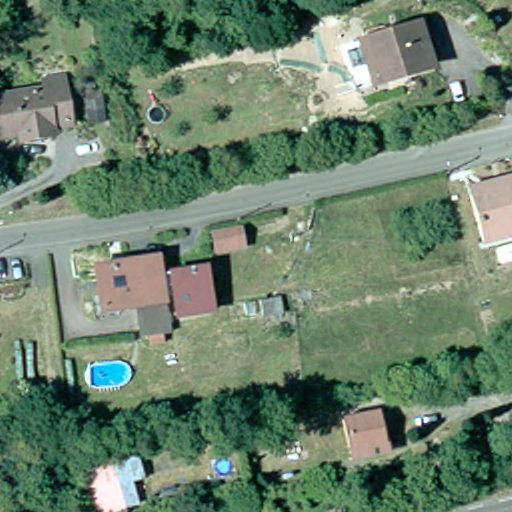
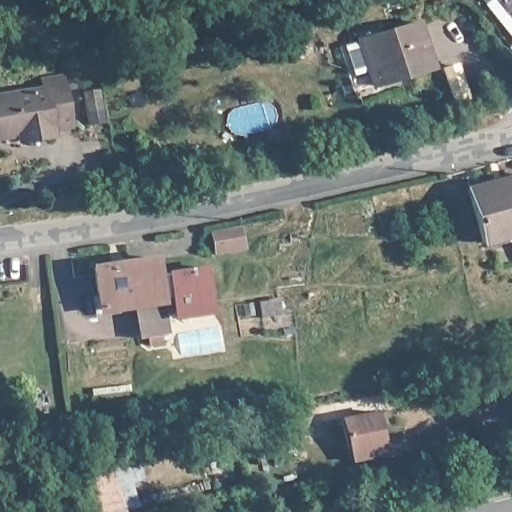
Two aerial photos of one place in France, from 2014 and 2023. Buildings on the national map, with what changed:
unchanged [(356,34),(416,16),(430,59),(390,72),(390,74),(370,80),(356,34)]
unchanged [(45,125),(45,130),(10,135),(10,130),(0,132),(0,90),(36,84),(35,76),(55,72),(63,122),(45,125)]
unchanged [(107,122),(91,125),(87,91),(102,89),(107,122)]
unchanged [(512,230),(480,238),(466,185),(512,174),(512,230)]
unchanged [(244,231),(246,247),(216,251),(214,234),(244,231)]
unchanged [(167,308),(164,288),(155,290),(160,325),(132,330),(128,296),(92,301),(85,258),(149,248),(151,265),(186,261),(197,259),(200,278),(204,303),(167,308)]
unchanged [(265,298),(267,309),(227,317),(224,305),(265,298)]
unchanged [(347,448),(341,415),(375,408),(381,442),(347,448)]
unchanged [(124,511),(122,512),(92,512),(80,465),(110,457),(124,511)]

